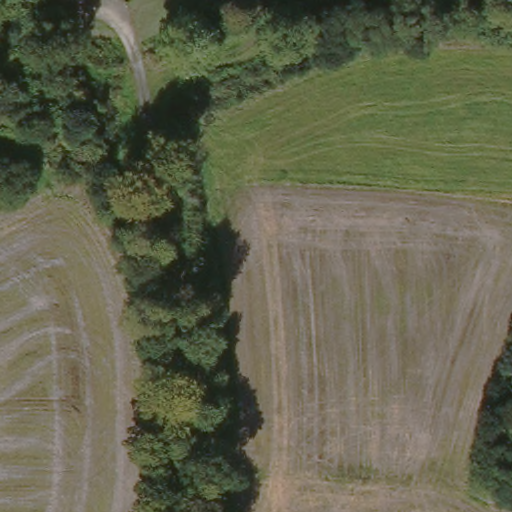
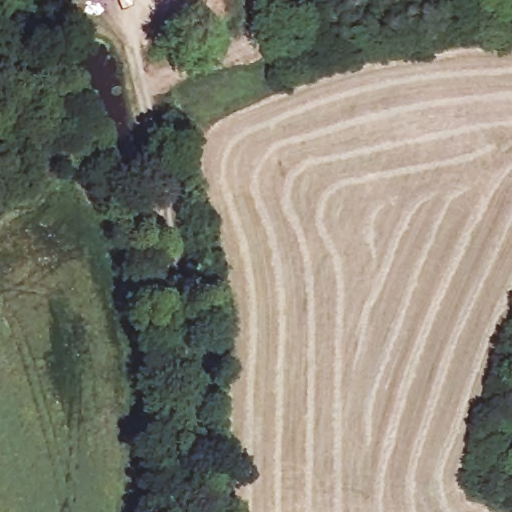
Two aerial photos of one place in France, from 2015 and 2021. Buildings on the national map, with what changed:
unchanged [(71,11),(67,0),(89,0),(91,3),(71,11)]

